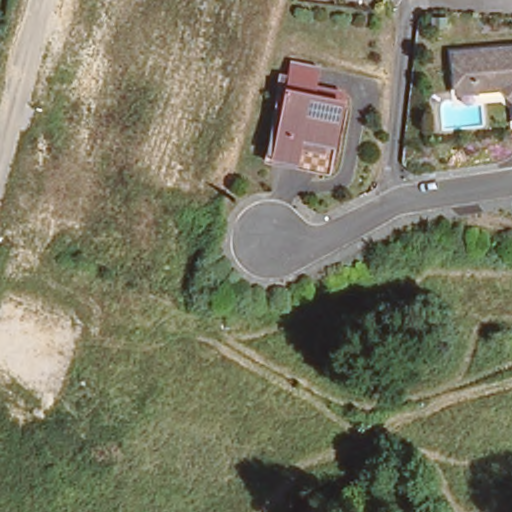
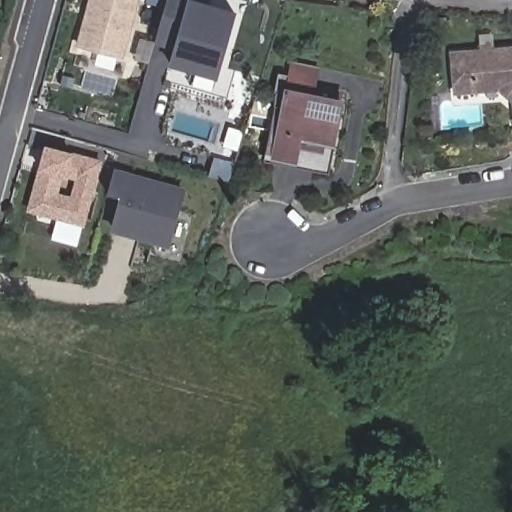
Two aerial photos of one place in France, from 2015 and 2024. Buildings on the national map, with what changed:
new [(87,0),(138,0),(124,58),(76,45),(87,0)]
new [(172,49),(153,44),(164,0),(210,0),(210,4),(236,11),(217,79),(168,65),(172,49)]
unchanged [(447,51),(512,45),(512,103),(509,104),(508,90),(510,88),(503,83),(500,84),(450,88),(447,51)]
unchanged [(327,143),(278,136),(283,98),(283,91),(333,98),(332,105),(327,143)]
unchanged [(278,136),(327,143),(332,105),(341,106),(332,175),(267,166),(276,97),(283,98),(278,136)]
new [(27,210),(38,169),(45,145),(75,153),(100,160),(83,226),(27,210)]
new [(169,246),(109,230),(118,196),(108,193),(115,168),(183,187),(169,246)]

